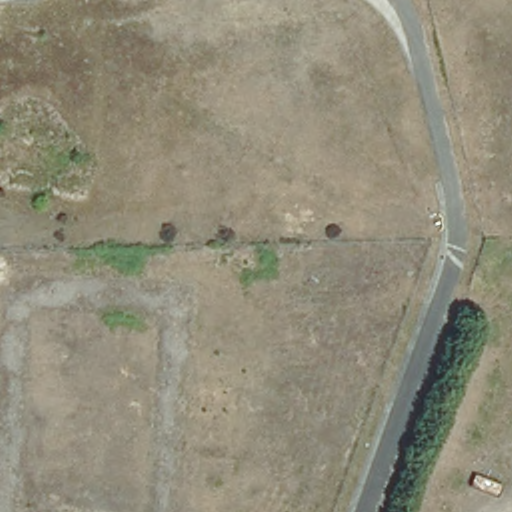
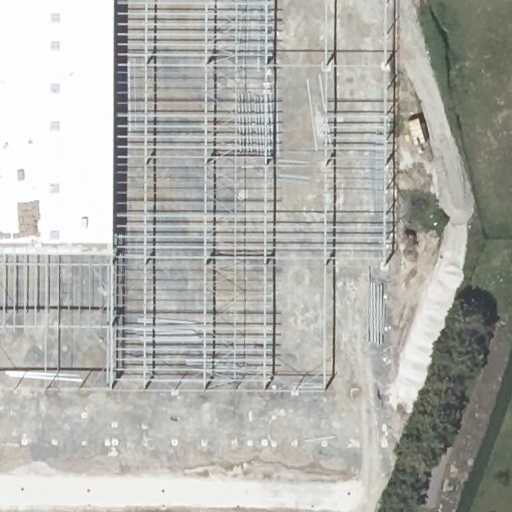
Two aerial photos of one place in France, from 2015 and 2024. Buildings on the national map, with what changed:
new [(382,268),(325,268),(323,392),(0,389),(0,0),(385,0),(382,268)]
unchanged [(428,512),(417,512),(486,325),(495,329),(428,512)]

